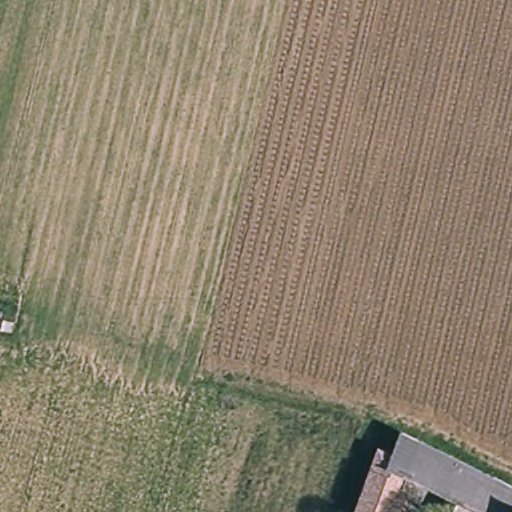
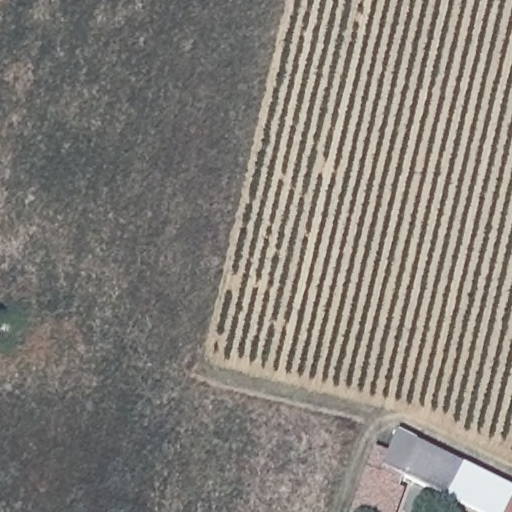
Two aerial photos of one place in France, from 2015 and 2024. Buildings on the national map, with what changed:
unchanged [(512,512),(468,512),(409,481),(390,472),(397,455),(404,435),(512,489),(512,512)]
unchanged [(390,472),(409,481),(398,512),(353,512),(377,448),(397,455),(390,472)]

